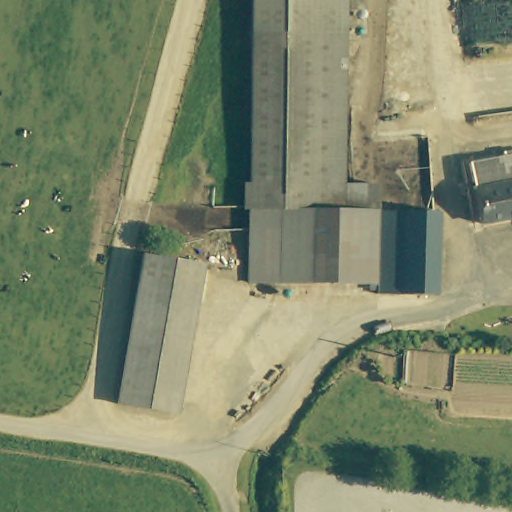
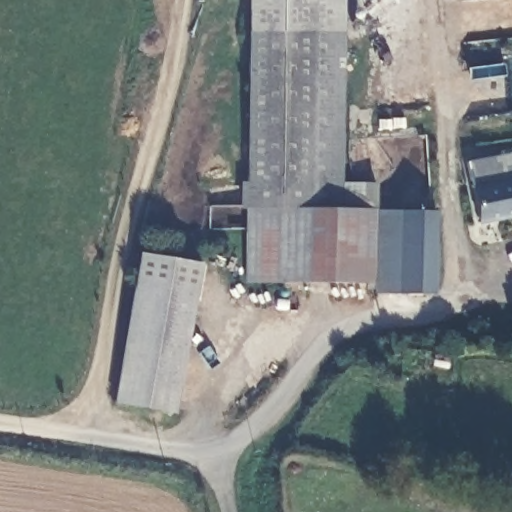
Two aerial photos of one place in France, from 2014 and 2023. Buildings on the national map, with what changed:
unchanged [(255,278),(246,278),(248,256),(249,241),(251,204),(254,30),(256,30),(256,0),(346,0),(345,32),(346,34),(340,179),(376,181),(375,205),(339,203),(339,205),(256,202),(256,204),(313,206),(310,280),(255,278)]
unchanged [(475,219),(469,171),(464,162),(512,155),(512,214),(475,219)]
unchanged [(373,285),(373,282),(310,280),(313,206),(376,209),(437,212),(434,293),(399,293),(384,294),(373,289),(373,285)]
unchanged [(135,284),(141,254),(199,264),(193,295),(135,284)]
unchanged [(135,284),(193,295),(172,413),(111,401),(135,284)]

